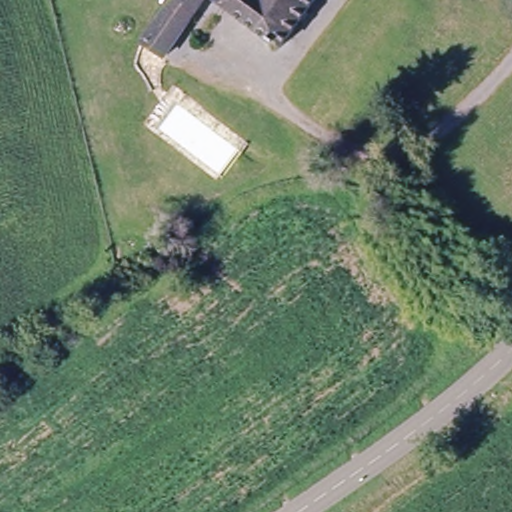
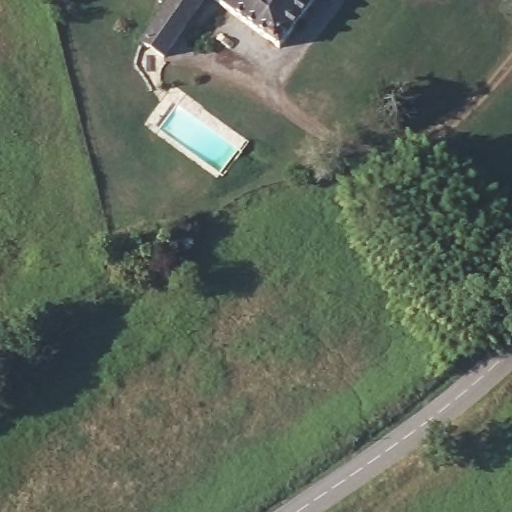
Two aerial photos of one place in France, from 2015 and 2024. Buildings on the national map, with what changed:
unchanged [(212,0),(184,35),(161,18),(174,0),(212,0)]
unchanged [(222,5),(226,0),(320,0),(283,52),(222,5)]

